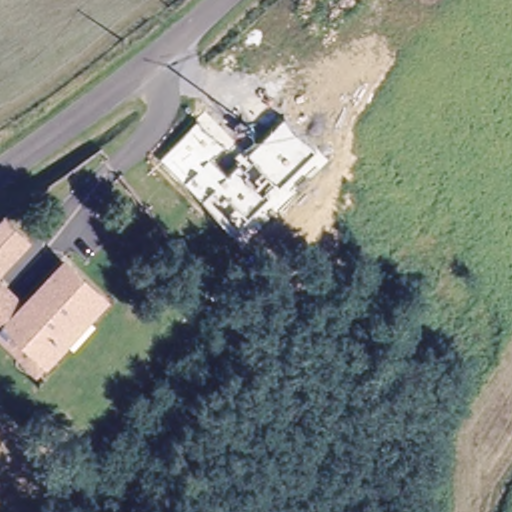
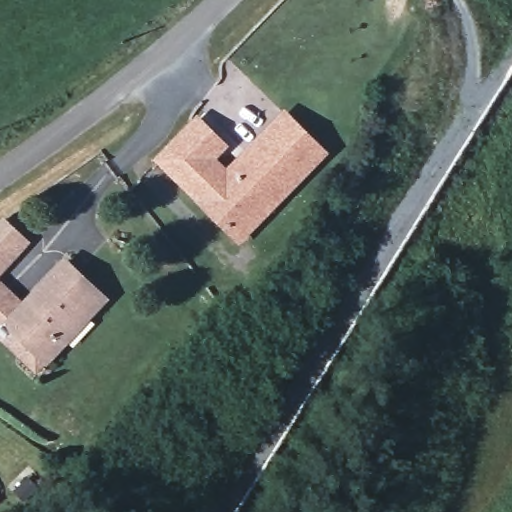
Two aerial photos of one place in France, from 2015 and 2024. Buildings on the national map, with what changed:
new [(200,119),(228,146),(215,159),(230,173),(287,114),(320,145),(318,147),(234,233),(161,162),(160,160),(200,119)]
new [(318,147),(325,154),(241,240),(234,233),(318,147)]
unchanged [(5,217),(33,243),(19,258),(0,278),(0,223),(5,218),(5,217)]
unchanged [(12,347),(9,343),(0,335),(0,286),(26,311),(69,267),(103,301),(107,305),(100,312),(41,374),(12,347)]

